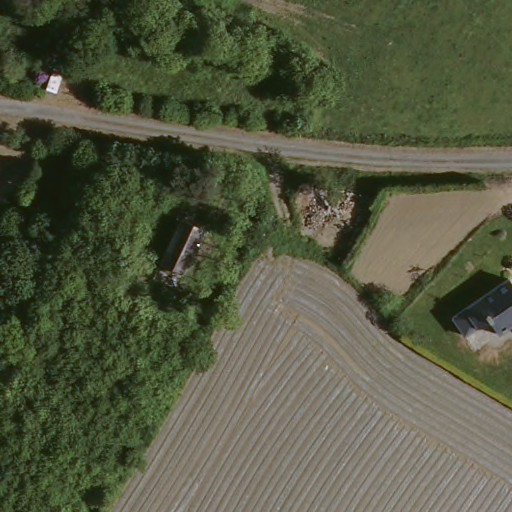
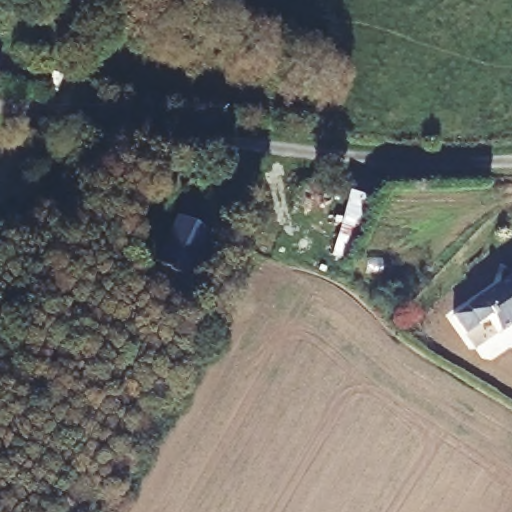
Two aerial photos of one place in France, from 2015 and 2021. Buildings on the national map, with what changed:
unchanged [(3,59),(8,59),(6,62),(0,72),(0,58),(3,59)]
unchanged [(211,227),(190,272),(166,261),(187,217),(211,227)]
unchanged [(512,328),(506,332),(496,318),(472,332),(458,314),(512,281),(512,328)]

